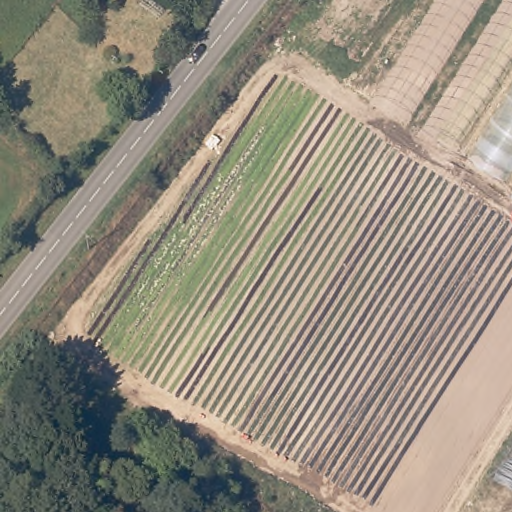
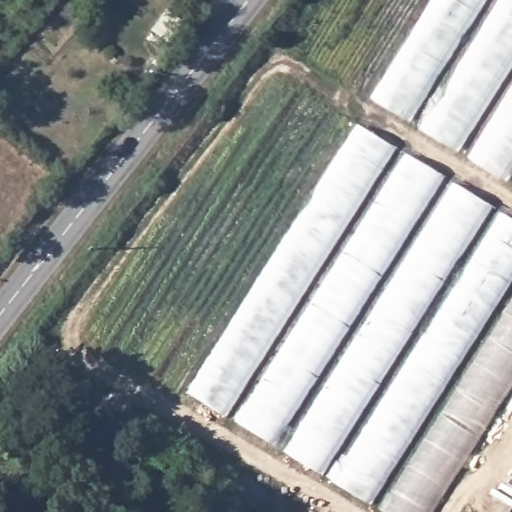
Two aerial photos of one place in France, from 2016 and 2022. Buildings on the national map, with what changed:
new [(372,100),(434,0),(512,0),(512,184),(372,100)]
new [(381,512),(189,397),(360,123),(512,217),(512,389),(434,512),(381,512)]

